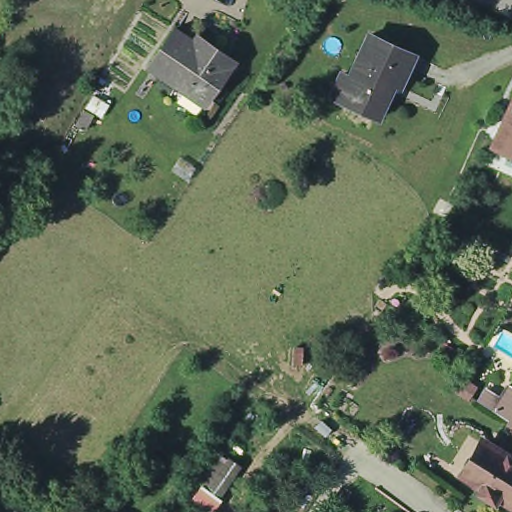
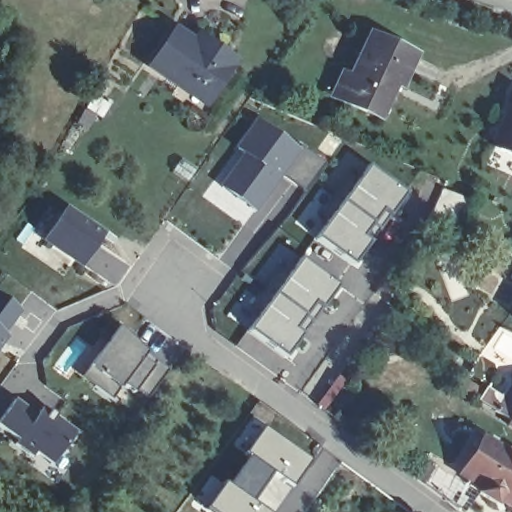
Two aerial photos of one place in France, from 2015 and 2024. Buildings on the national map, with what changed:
unchanged [(148,70),(175,30),(193,41),(197,35),(219,50),(237,61),(211,102),(207,109),(177,89),(148,70)]
unchanged [(346,75),(355,79),(375,36),(420,56),(404,87),(399,86),(382,120),(348,103),(335,97),(346,75)]
unchanged [(512,107),(512,156),(494,147),(512,107)]
new [(297,149),(300,145),(325,163),(304,192),(280,174),(254,211),(222,188),(245,155),(237,150),(257,121),(297,149)]
new [(333,196),(346,177),(354,183),(367,166),(404,192),(398,200),(400,202),(380,230),(333,196)]
new [(358,256),(352,264),(315,238),(328,220),(320,214),(333,196),(380,230),(360,257),(358,256)]
new [(64,210),(102,235),(82,266),(44,240),(64,210)]
new [(266,288),(279,270),(288,276),(300,258),(337,285),(331,292),(333,294),(313,322),(266,288)]
new [(291,348),(285,357),(248,331),(261,312),(253,307),(266,288),(313,322),(293,350),(291,348)]
new [(18,311),(1,333),(4,335),(0,340),(0,298),(18,311)]
new [(120,325),(134,335),(128,342),(135,347),(136,345),(170,369),(149,397),(137,388),(134,393),(123,385),(113,399),(95,386),(82,377),(90,366),(120,325)]
new [(337,375),(349,383),(329,413),(316,405),(337,375)]
unchanged [(473,387),(465,399),(454,392),(463,380),(473,387)]
unchanged [(512,391),(512,418),(500,411),(512,391)]
new [(41,410),(43,407),(56,416),(77,432),(53,465),(37,453),(34,457),(16,444),(19,440),(0,427),(0,420),(16,400),(38,415),(41,410)]
new [(205,507),(224,482),(245,456),(243,453),(262,427),(311,461),(291,490),(275,512),(211,512),(205,507)]
unchanged [(502,498),(485,487),(489,482),(473,472),(467,469),(490,435),(496,438),(512,449),(512,498),(506,493),(502,498)]

